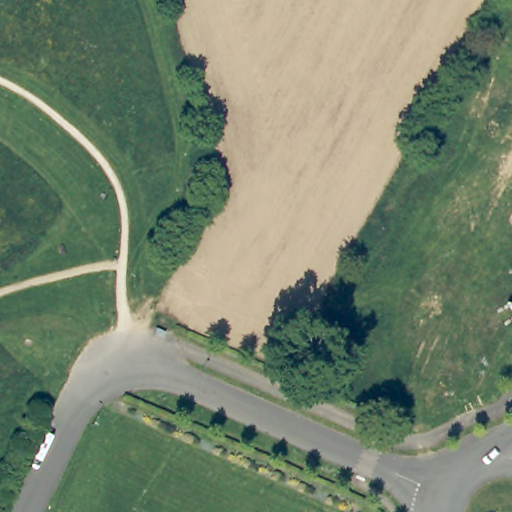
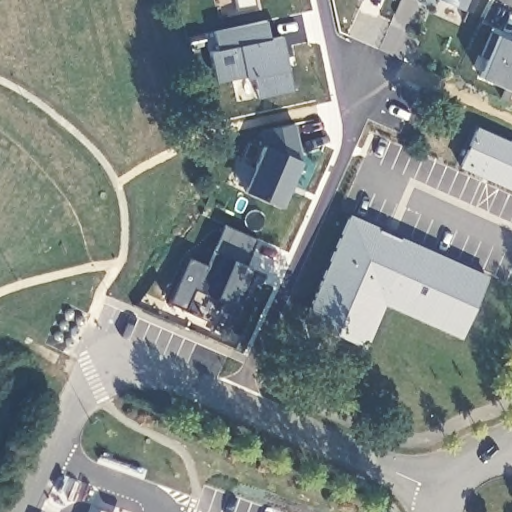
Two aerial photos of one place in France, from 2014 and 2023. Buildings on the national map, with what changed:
new [(234,10),(231,0),(252,0),(253,6),(234,10)]
new [(438,0),(468,0),(463,11),(438,0)]
new [(266,20),(270,40),(283,36),(290,70),(293,91),(259,96),(255,77),(216,84),(210,51),(218,50),(214,31),(266,20)]
new [(480,76),(498,34),(512,40),(512,89),(480,76)]
new [(261,130),(297,124),(302,161),(281,206),(246,191),(264,145),(261,130)]
new [(477,128),(512,143),(512,190),(460,167),(477,128)]
new [(384,304),(364,347),(304,321),(350,215),(488,275),(462,338),(384,304)]
new [(224,225),(257,238),(245,266),(252,269),(232,315),(217,308),(221,300),(216,297),(194,287),(185,309),(170,303),(189,258),(206,266),(212,251),(224,225)]

